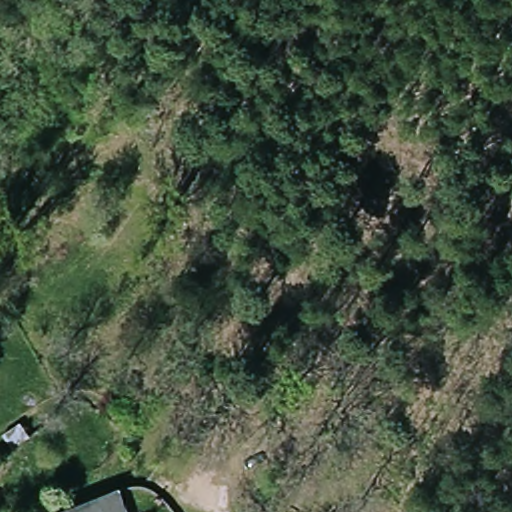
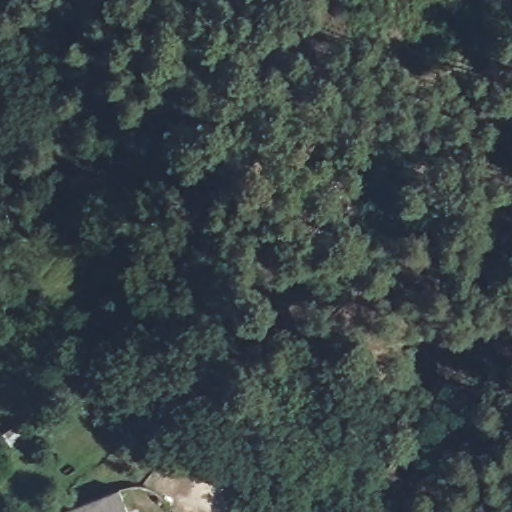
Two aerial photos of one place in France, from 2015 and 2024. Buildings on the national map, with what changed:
unchanged [(128,493),(132,512),(66,512),(106,500),(128,493)]

